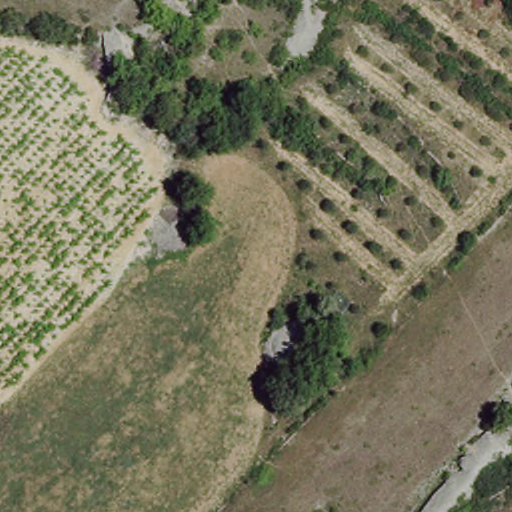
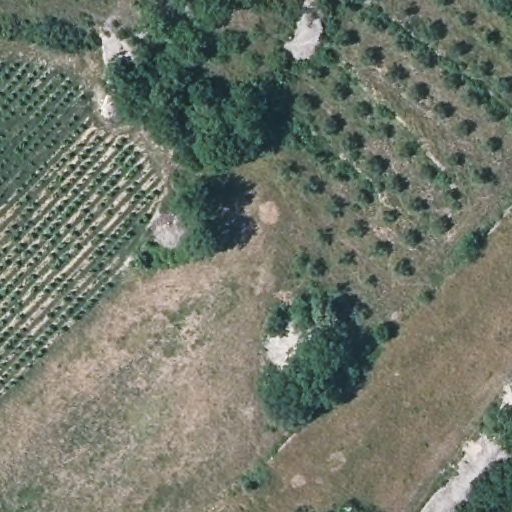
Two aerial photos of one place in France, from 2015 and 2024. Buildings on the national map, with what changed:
[]

